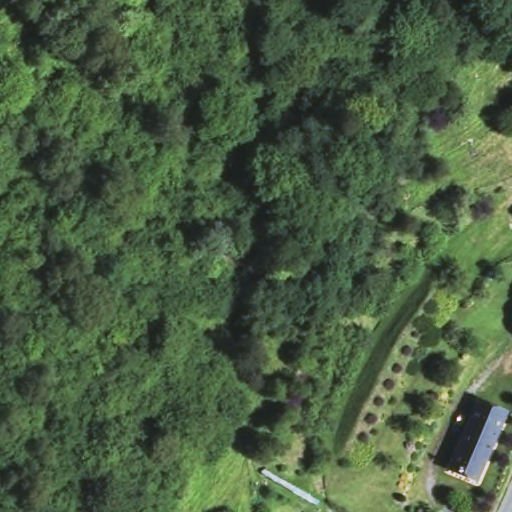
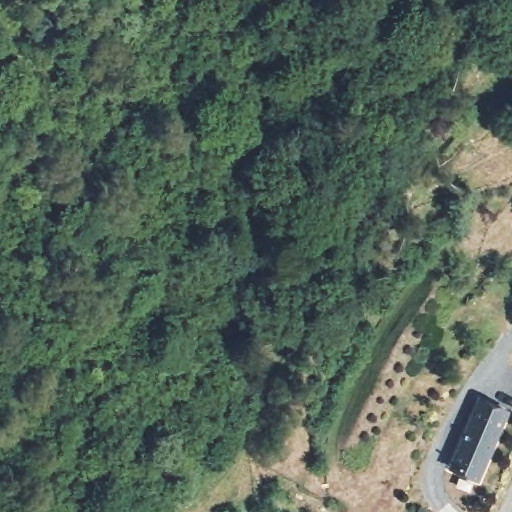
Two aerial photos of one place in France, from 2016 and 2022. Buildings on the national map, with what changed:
unchanged [(496,448),(483,478),(452,464),(478,396),(512,408),(512,413),(496,448)]

